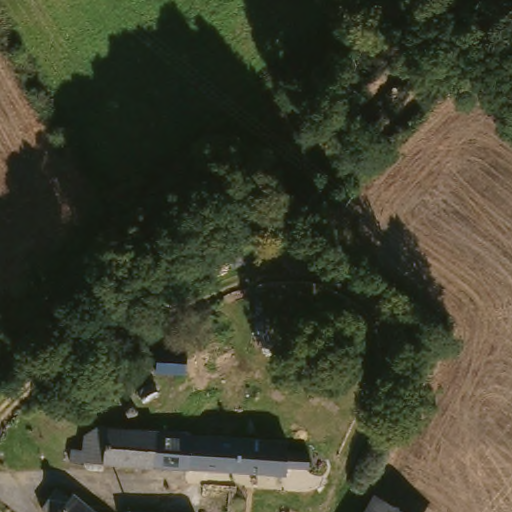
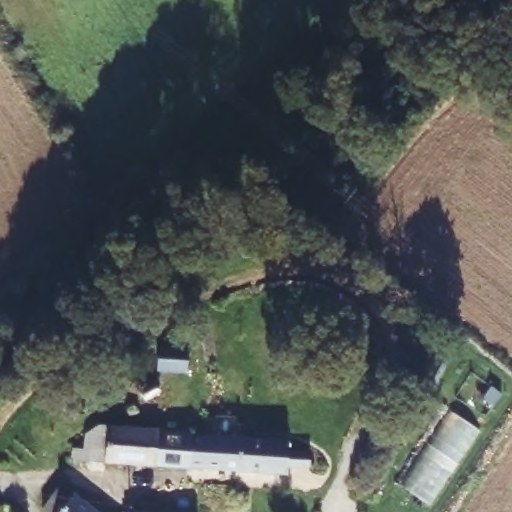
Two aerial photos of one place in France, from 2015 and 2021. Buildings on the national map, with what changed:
unchanged [(154,358),(156,340),(187,343),(186,362),(154,358)]
new [(452,411),(476,427),(425,502),(402,487),(452,411)]
unchanged [(123,456),(114,455),(90,451),(83,452),(71,450),(72,440),(84,441),(87,415),(150,421),(148,459),(123,456)]
unchanged [(157,422),(192,426),(192,431),(186,463),(148,459),(150,421),(157,422)]
unchanged [(286,442),(285,450),(308,452),(306,467),(284,465),(284,473),(186,463),(192,431),(219,434),(286,442)]
unchanged [(45,497),(59,482),(71,493),(73,491),(97,512),(55,512),(58,508),(45,497)]
unchanged [(194,511),(194,512),(126,512),(126,507),(194,511)]

